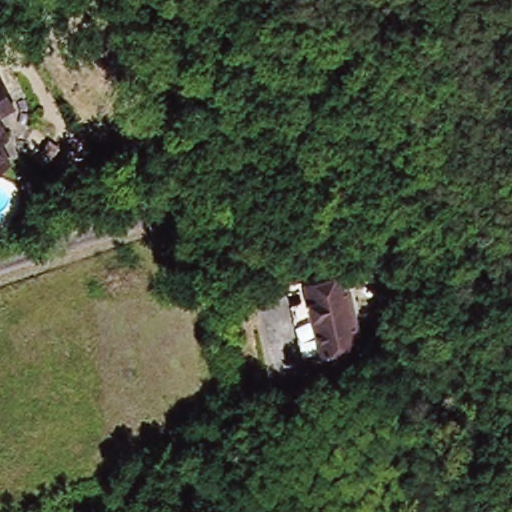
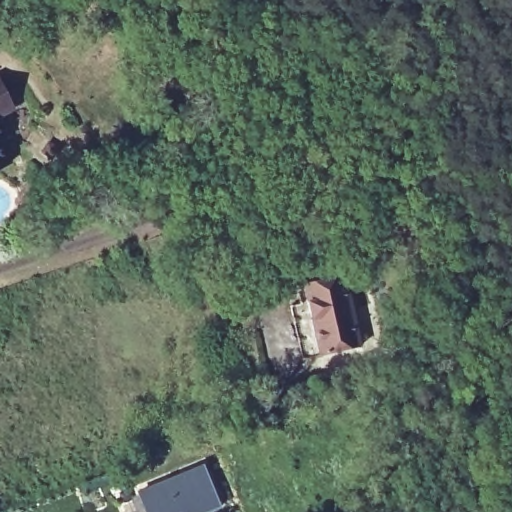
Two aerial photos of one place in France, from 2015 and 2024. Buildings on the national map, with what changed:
unchanged [(0,93),(10,121),(0,125),(0,93)]
unchanged [(284,285),(344,266),(366,339),(306,358),(284,285)]
new [(221,507),(208,512),(147,512),(139,492),(205,466),(221,507)]

